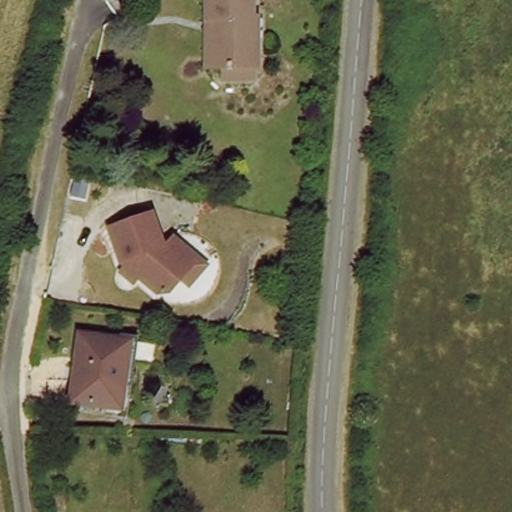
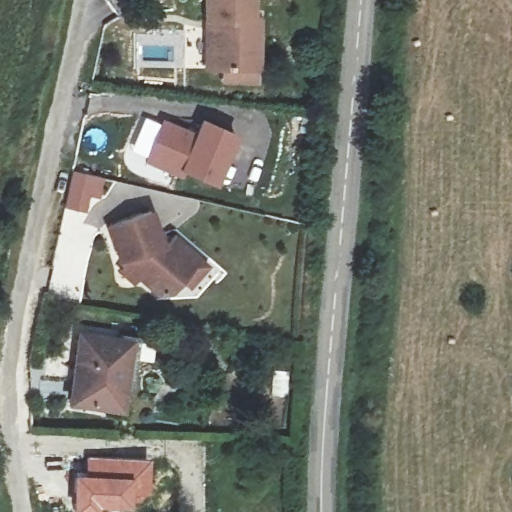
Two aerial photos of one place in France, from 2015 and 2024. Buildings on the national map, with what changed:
unchanged [(253,20),(253,69),(206,69),(207,22),(202,21),(202,0),(248,0),(248,20),(253,20)]
new [(193,132),(201,117),(241,134),(216,187),(184,172),(181,177),(143,161),(161,119),(193,132)]
unchanged [(164,210),(178,242),(181,242),(207,262),(186,290),(174,291),(134,260),(121,227),(164,210)]
unchanged [(113,337),(114,331),(131,333),(121,420),(104,417),(105,408),(63,402),(73,331),(113,337)]
new [(71,472),(84,472),(84,456),(148,458),(146,492),(128,492),(128,506),(96,507),(96,512),(71,512),(71,472)]

